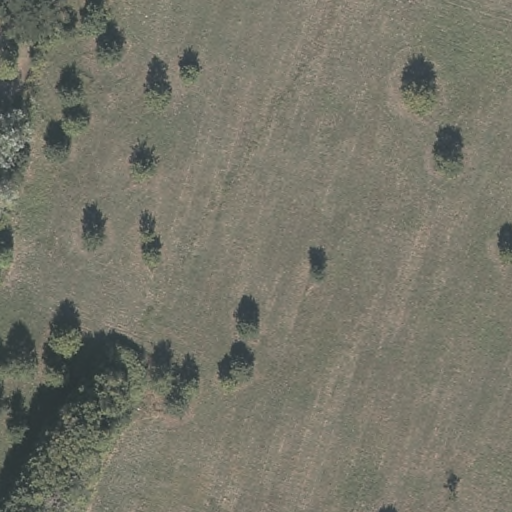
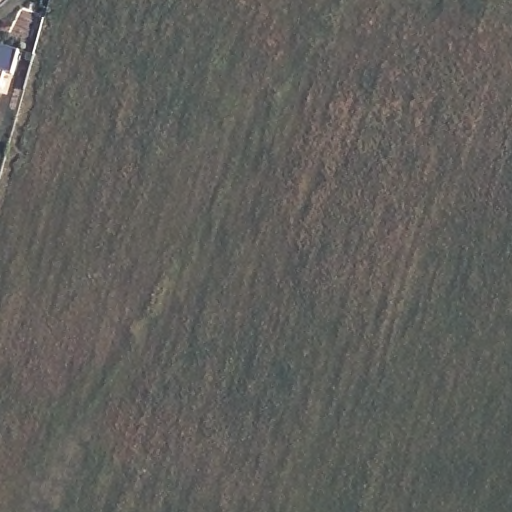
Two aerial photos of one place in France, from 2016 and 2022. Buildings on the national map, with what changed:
new [(3,0),(0,3),(0,0),(3,0)]
new [(20,50),(13,76),(6,74),(0,94),(0,44),(20,50)]

